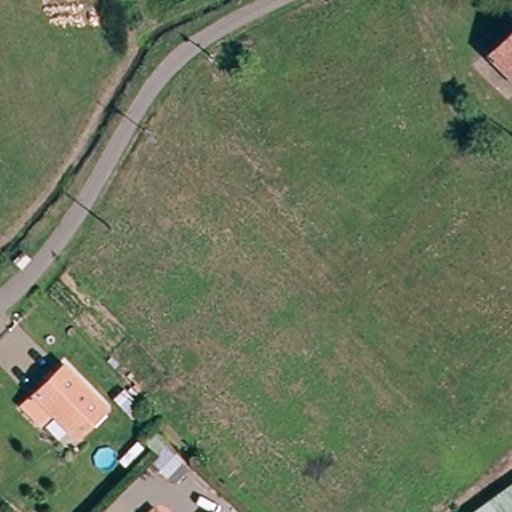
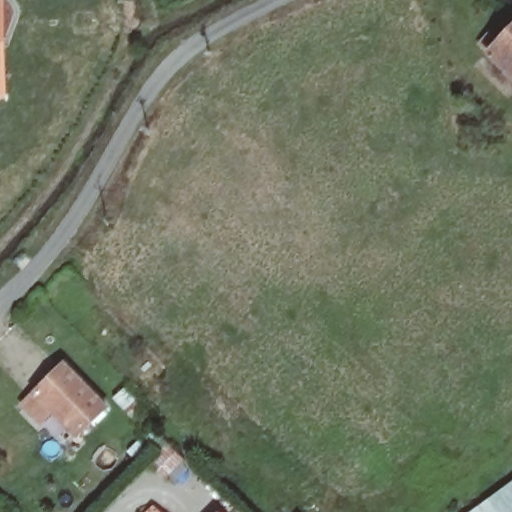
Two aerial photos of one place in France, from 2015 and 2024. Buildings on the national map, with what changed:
new [(5,99),(0,99),(0,0),(4,0),(5,99)]
unchanged [(483,56),(485,54),(473,41),(484,32),(495,45),(512,28),(512,88),(483,56)]
unchanged [(110,408),(79,437),(52,409),(40,420),(24,402),(66,362),(110,408)]
unchanged [(190,457),(171,475),(152,456),(170,437),(190,457)]
unchanged [(465,512),(512,480),(512,512),(465,512)]
unchanged [(154,512),(145,512),(150,508),(154,512)]

